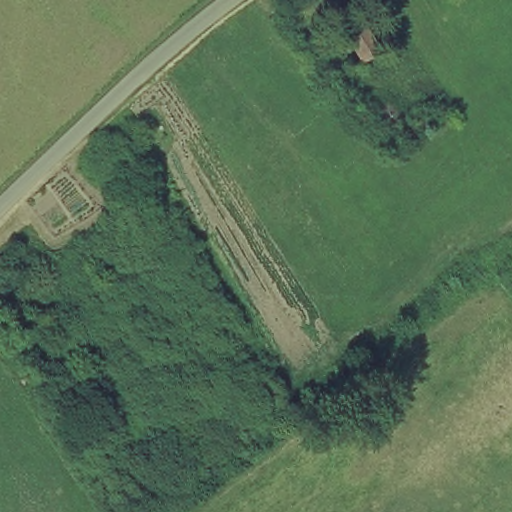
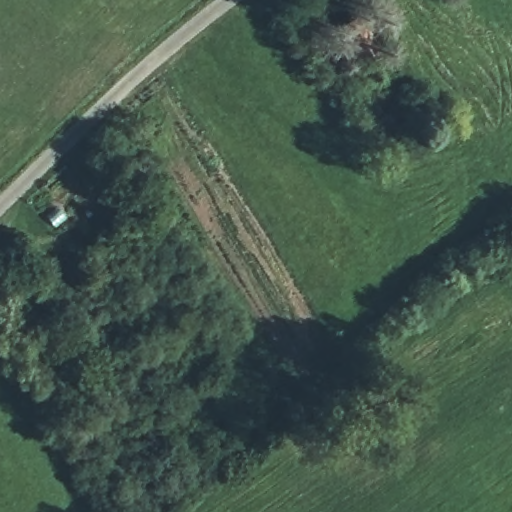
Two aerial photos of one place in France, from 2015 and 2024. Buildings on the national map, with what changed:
unchanged [(341,28),(364,14),(382,51),(360,65),(341,28)]

